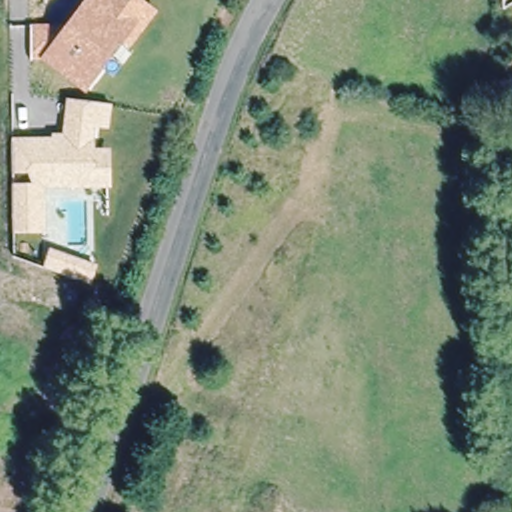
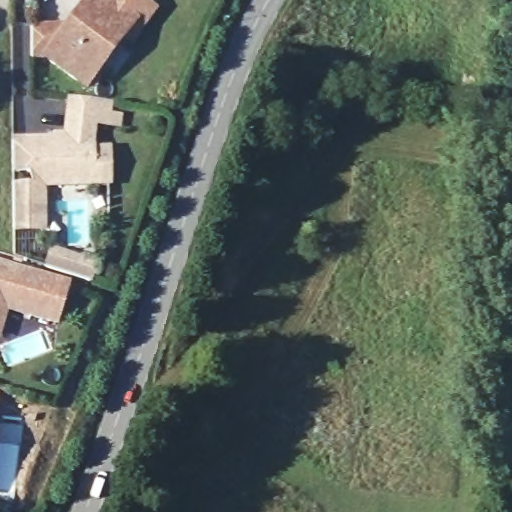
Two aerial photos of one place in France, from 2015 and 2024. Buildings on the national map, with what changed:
unchanged [(156,11),(129,51),(122,45),(85,95),(44,61),(32,61),(32,24),(65,23),(83,0),(142,0),(156,11)]
unchanged [(113,105),(110,127),(97,125),(96,148),(112,149),(112,187),(46,188),(46,234),(14,234),(12,182),(30,183),(29,174),(13,174),(12,136),(53,136),(53,132),(62,132),(65,99),(113,105)]
new [(43,267),(50,249),(97,265),(91,284),(43,267)]
new [(68,285),(56,329),(8,315),(0,340),(0,263),(68,285)]

